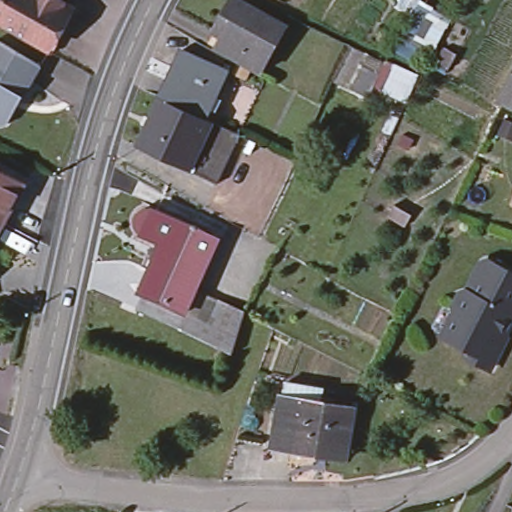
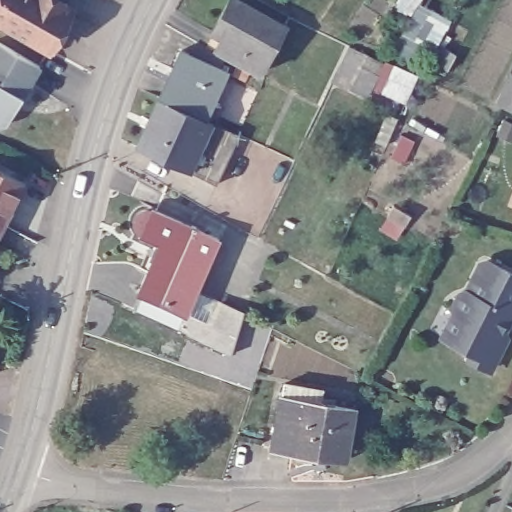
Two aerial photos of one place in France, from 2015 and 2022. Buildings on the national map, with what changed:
unchanged [(0,16),(0,0),(10,0),(0,16)]
unchanged [(79,12),(55,53),(0,23),(0,16),(10,0),(58,0),(79,12)]
unchanged [(169,65),(177,46),(186,50),(194,37),(212,46),(221,27),(212,22),(224,0),(238,0),(280,23),(255,68),(254,70),(220,52),(214,64),(222,67),(201,114),(200,116),(187,110),(166,98),(160,96),(173,67),(169,65)]
unchanged [(7,118),(0,118),(0,35),(41,59),(23,90),(15,104),(15,105),(7,118)]
unchanged [(371,96),(335,83),(352,45),(387,61),(371,96)]
unchanged [(510,74),(512,75),(512,113),(495,103),(510,74)]
unchanged [(132,142),(155,94),(157,95),(160,96),(166,98),(187,110),(200,116),(208,120),(185,169),(132,142)]
unchanged [(235,133),(212,183),(210,182),(185,169),(208,120),(232,132),(235,133)]
unchanged [(0,219),(0,169),(20,180),(0,219)]
unchanged [(152,262),(153,261),(160,244),(142,235),(152,210),(195,230),(175,275),(152,262)]
unchanged [(195,230),(218,241),(197,288),(175,275),(195,230)]
unchanged [(471,287),(486,259),(492,257),(512,269),(512,318),(500,342),(505,345),(494,365),(474,354),(477,348),(446,331),(434,325),(447,300),(454,303),(458,301),(465,289),(469,288),(471,287)]
unchanged [(139,292),(152,262),(175,275),(197,288),(185,313),(144,295),(139,292)]
unchanged [(137,311),(144,295),(185,313),(210,324),(219,304),(243,315),(231,354),(137,311)]
unchanged [(280,391),(354,404),(345,456),(271,443),(280,391)]

